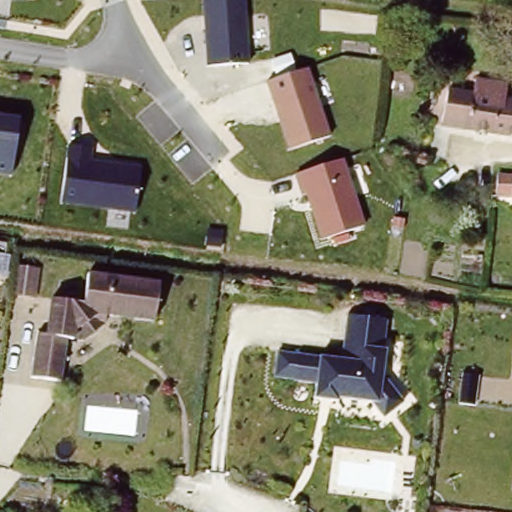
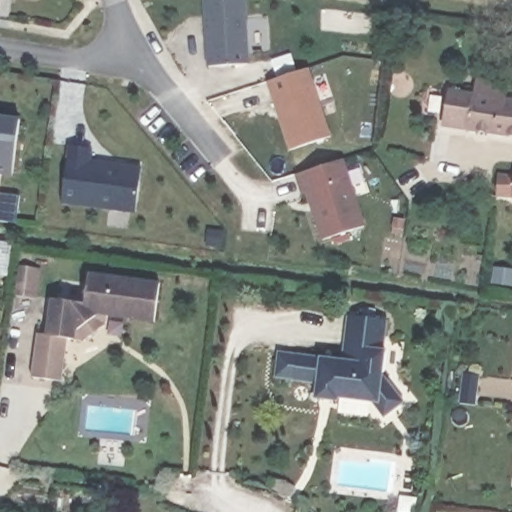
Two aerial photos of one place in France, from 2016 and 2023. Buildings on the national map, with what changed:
unchanged [(245,0),(247,63),(205,66),(201,0),(245,0)]
unchanged [(265,80),(308,66),(330,134),(288,149),(265,80)]
unchanged [(461,128),(437,124),(442,95),(512,106),(512,140),(461,133),(461,128)]
unchanged [(0,171),(0,116),(17,119),(13,153),(12,173),(0,171)]
unchanged [(59,204),(67,143),(93,146),(92,162),(140,169),(135,213),(59,204)]
unchanged [(300,197),(295,173),(343,156),(362,224),(320,241),(307,195),(300,197)]
unchanged [(498,180),(512,181),(512,201),(496,200),(498,180)]
unchanged [(152,321),(104,315),(102,325),(82,341),(64,338),(59,380),(30,376),(36,332),(45,333),(49,297),(83,301),(87,271),(158,281),(152,321)]
unchanged [(341,357),(345,314),(387,320),(382,375),(403,401),(383,414),(371,400),(337,395),(337,398),(314,395),(315,383),(273,377),(275,350),(341,357)]

